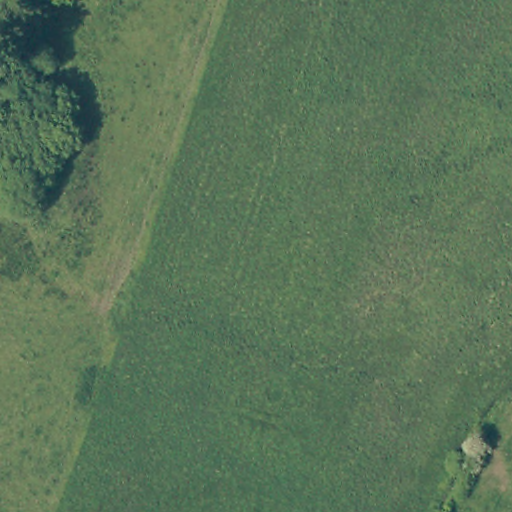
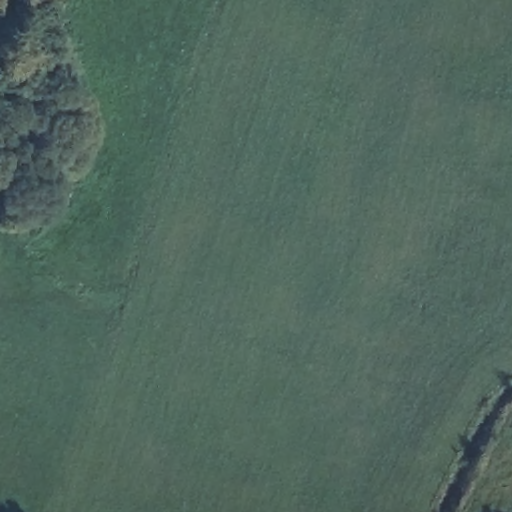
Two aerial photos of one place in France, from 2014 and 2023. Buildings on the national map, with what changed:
[]

